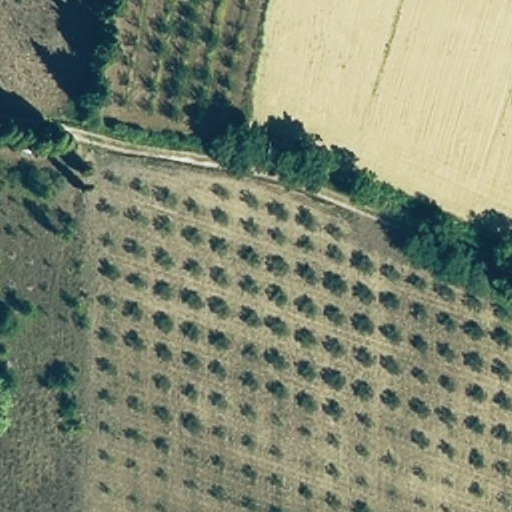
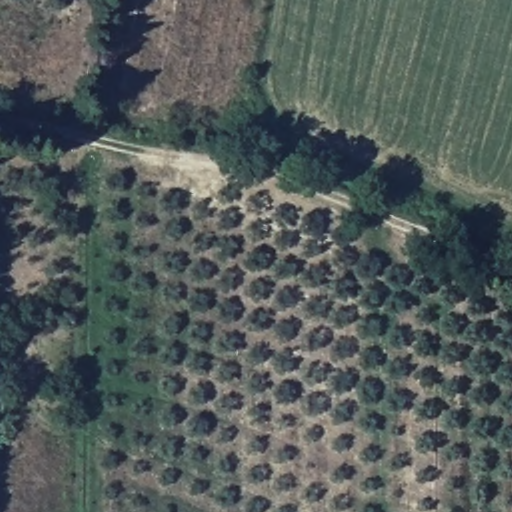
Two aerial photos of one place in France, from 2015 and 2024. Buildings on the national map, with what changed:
[]

